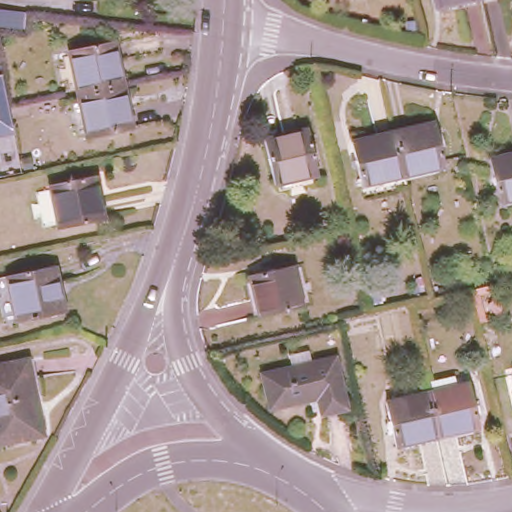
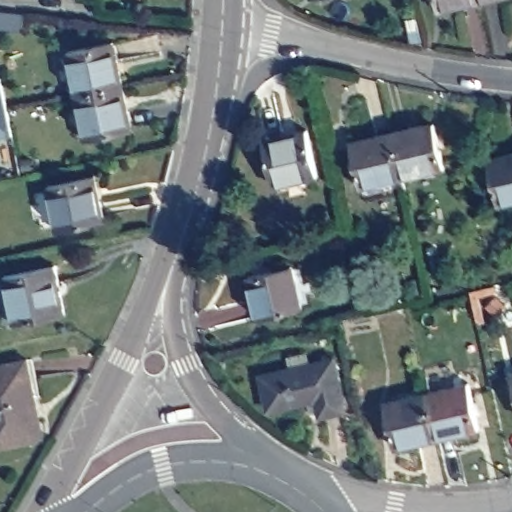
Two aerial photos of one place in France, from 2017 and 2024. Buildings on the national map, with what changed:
unchanged [(438,5),(437,0),(462,0),(438,5)]
unchanged [(77,98),(68,53),(113,43),(123,88),(77,98)]
unchanged [(133,131),(87,142),(77,98),(123,88),(133,131)]
unchanged [(432,121),(443,165),(402,174),(392,130),(432,121)]
unchanged [(362,184),(351,139),(392,130),(402,174),(362,184)]
unchanged [(312,133),(321,177),(277,189),(268,145),(312,133)]
unchanged [(490,158),(512,153),(512,198),(501,200),(490,158)]
unchanged [(92,172),(103,216),(60,227),(48,184),(92,172)]
unchanged [(57,267),(67,311),(20,324),(10,279),(57,267)]
unchanged [(295,268),(305,309),(261,319),(252,278),(295,268)]
unchanged [(296,373),(293,359),(313,355),(316,368),(340,363),(351,413),(326,418),(322,403),(276,413),(267,379),(296,373)]
unchanged [(30,356),(39,397),(34,398),(40,433),(2,441),(0,435),(0,363),(30,356)]
unchanged [(470,386),(480,430),(438,439),(428,396),(470,386)]
unchanged [(397,449),(387,405),(428,396),(438,439),(397,449)]

